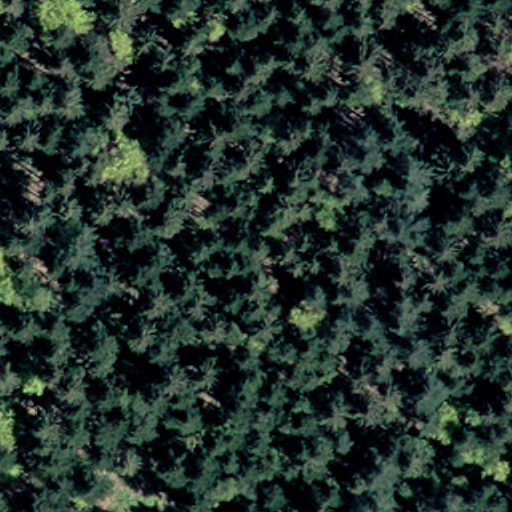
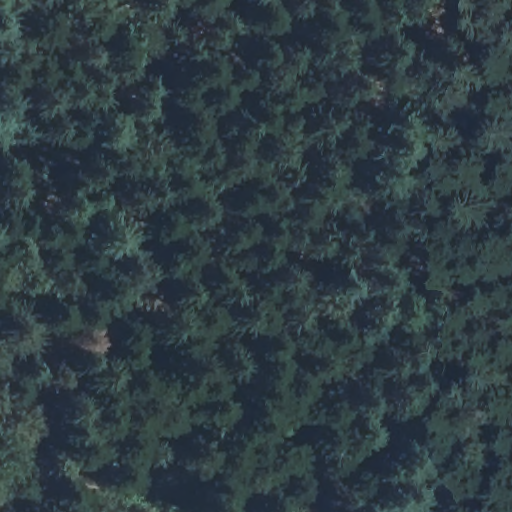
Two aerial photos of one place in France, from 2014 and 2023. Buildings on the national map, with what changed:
[]

